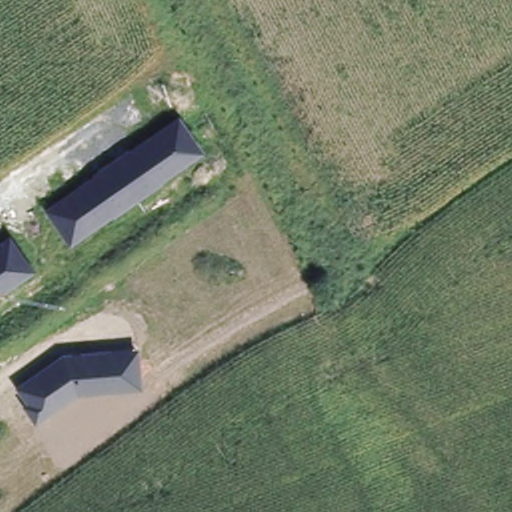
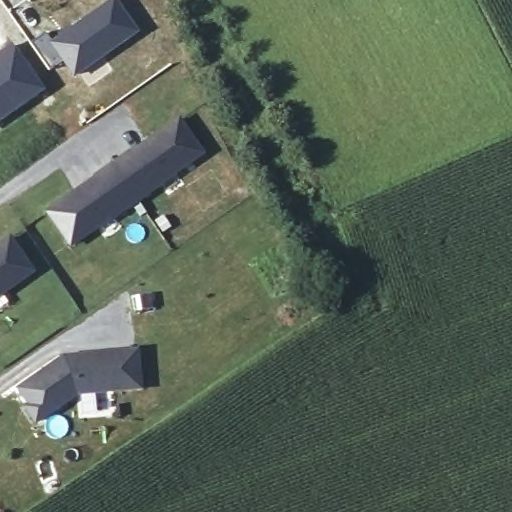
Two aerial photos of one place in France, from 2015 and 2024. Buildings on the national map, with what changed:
new [(49,38),(108,0),(117,0),(139,31),(72,78),(60,61),(50,68),(31,43),(46,32),(49,38)]
new [(12,44),(46,90),(0,122),(0,52),(12,44)]
unchanged [(204,154),(69,249),(41,210),(177,115),(204,154)]
unchanged [(34,270),(0,295),(0,235),(7,230),(34,270)]
unchanged [(141,391),(76,397),(36,424),(22,406),(27,403),(14,386),(61,354),(139,347),(141,391)]

